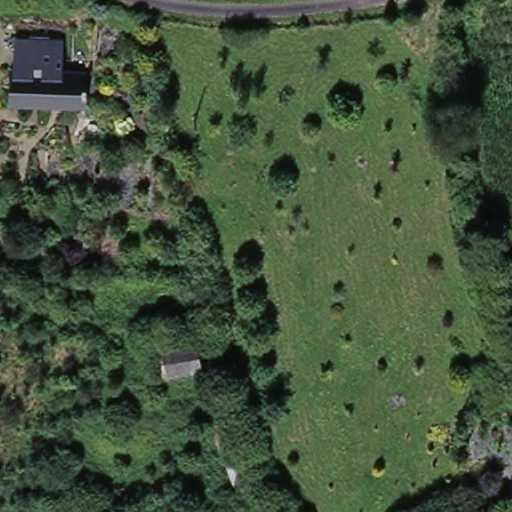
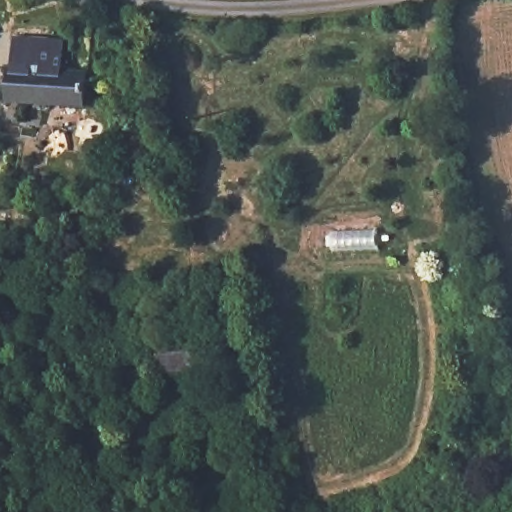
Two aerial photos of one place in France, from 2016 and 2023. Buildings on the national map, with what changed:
unchanged [(15,64),(19,35),(64,39),(60,67),(15,64)]
unchanged [(87,68),(85,110),(11,105),(15,64),(87,68)]
unchanged [(157,336),(195,330),(200,362),(164,369),(157,336)]
unchanged [(110,420),(127,418),(133,448),(116,450),(110,420)]

